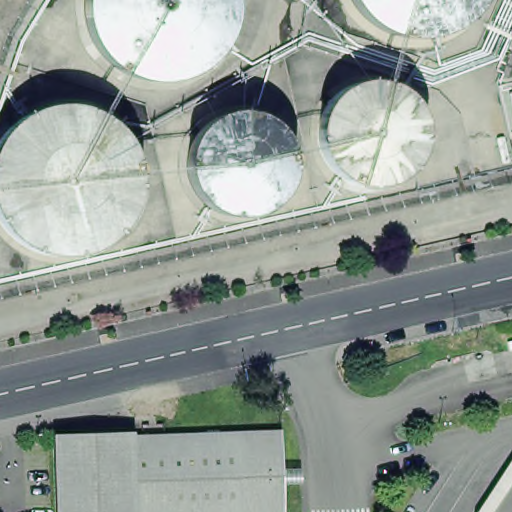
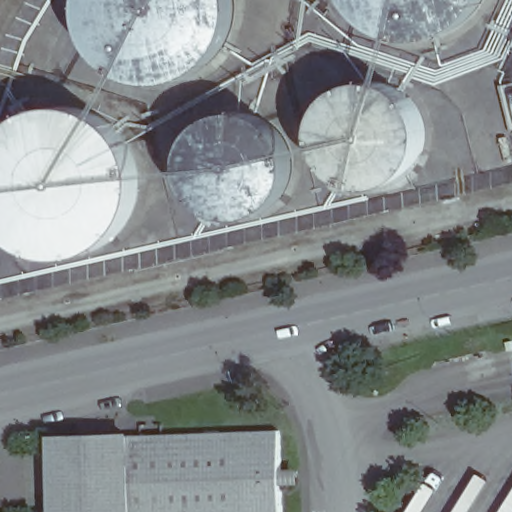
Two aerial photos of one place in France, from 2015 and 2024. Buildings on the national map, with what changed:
unchanged [(239,431),(278,429),(280,512),(242,512),(239,431)]
unchanged [(127,435),(233,431),(239,431),(242,512),(130,512),(127,435)]
unchanged [(56,438),(127,435),(130,512),(58,512),(56,438)]

